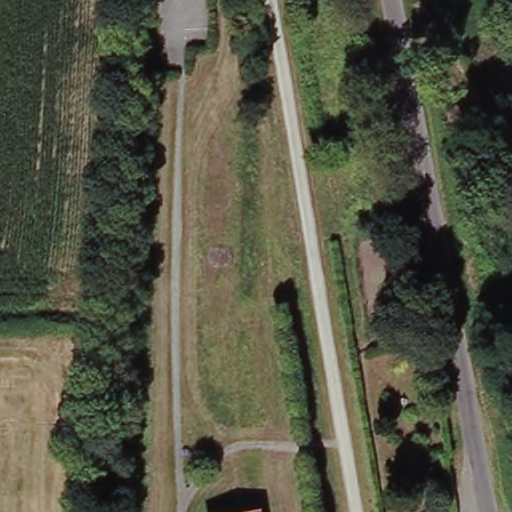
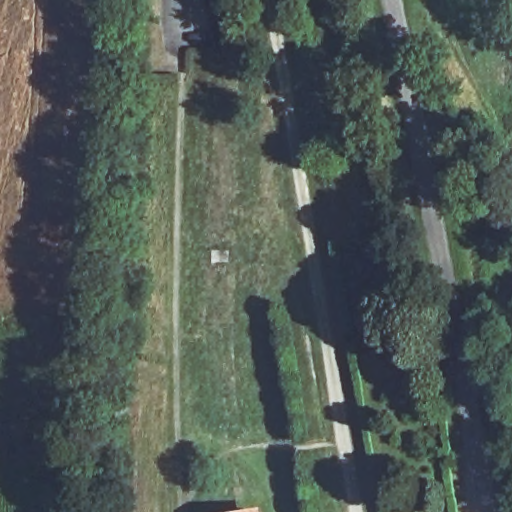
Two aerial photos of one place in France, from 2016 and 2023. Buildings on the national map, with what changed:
unchanged [(268,512),(254,512),(268,509),(268,512)]

